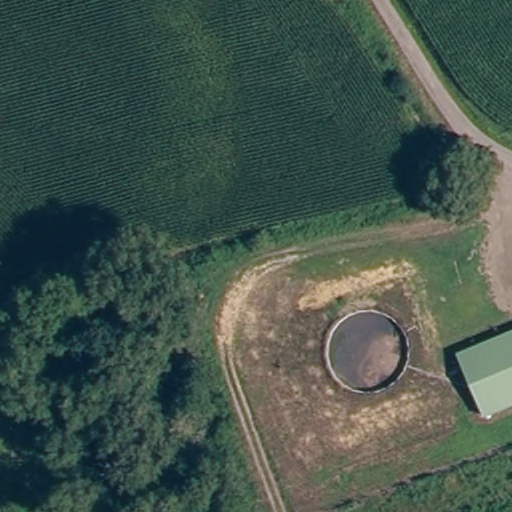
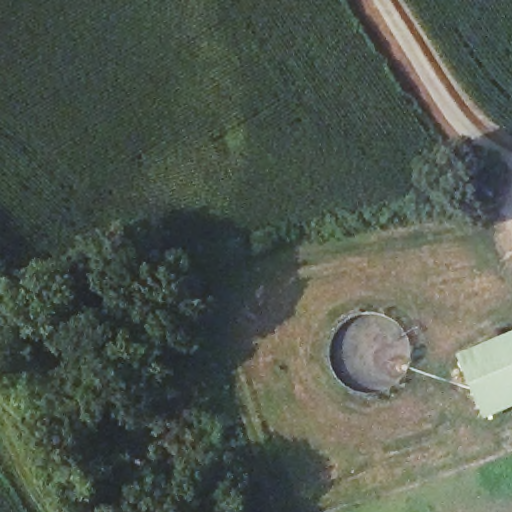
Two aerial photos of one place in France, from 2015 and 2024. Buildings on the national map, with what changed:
unchanged [(460,355),(512,333),(512,408),(486,419),(460,355)]

